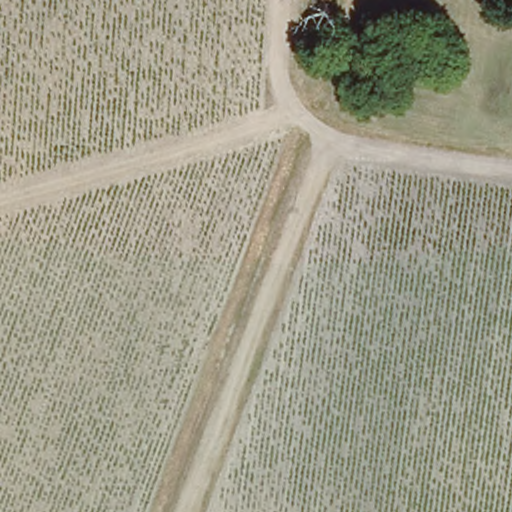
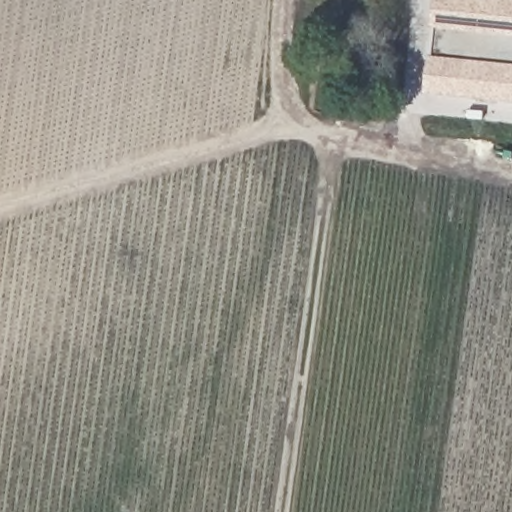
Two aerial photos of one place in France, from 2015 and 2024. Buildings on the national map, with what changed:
new [(429,92),(435,0),(512,0),(512,100),(429,92)]

